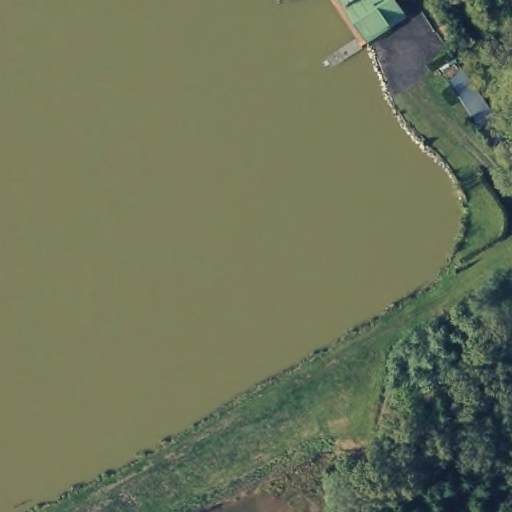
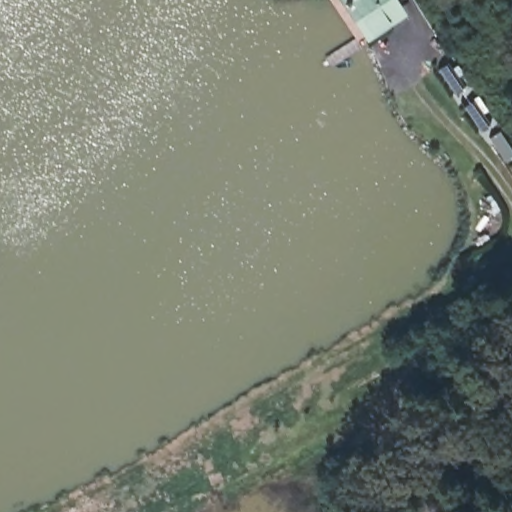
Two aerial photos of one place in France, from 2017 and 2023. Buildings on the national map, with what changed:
unchanged [(415,3),(367,37),(341,0),(413,0),(415,3)]

